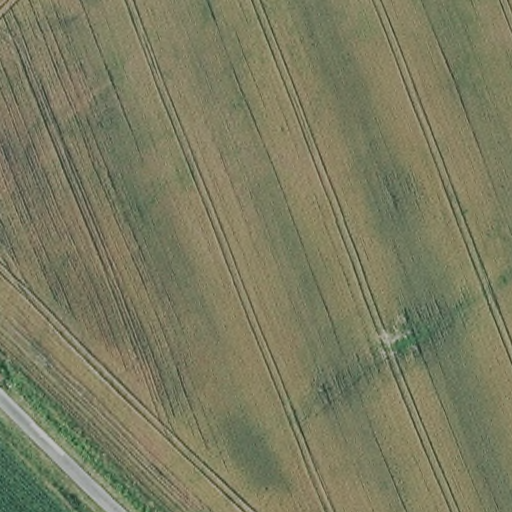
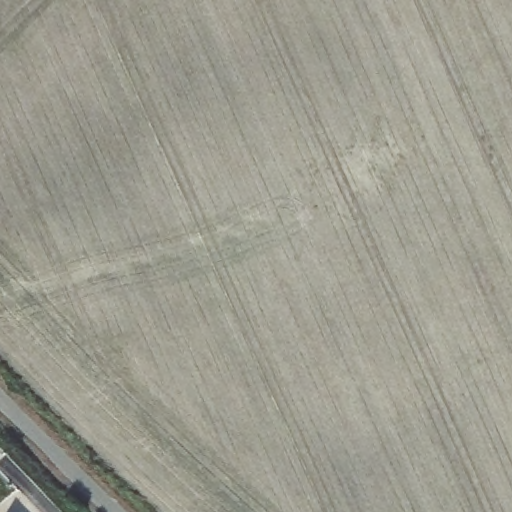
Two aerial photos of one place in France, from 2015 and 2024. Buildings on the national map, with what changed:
[]

